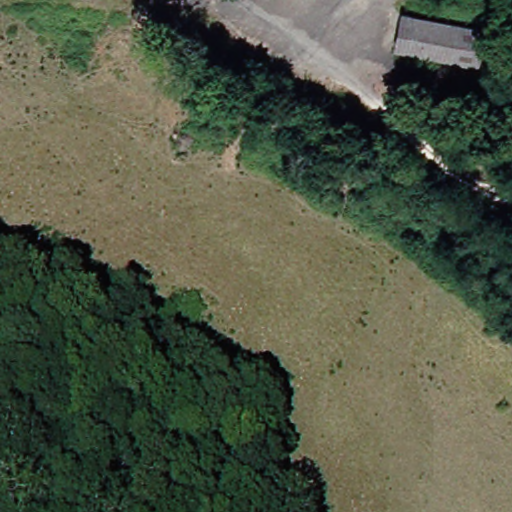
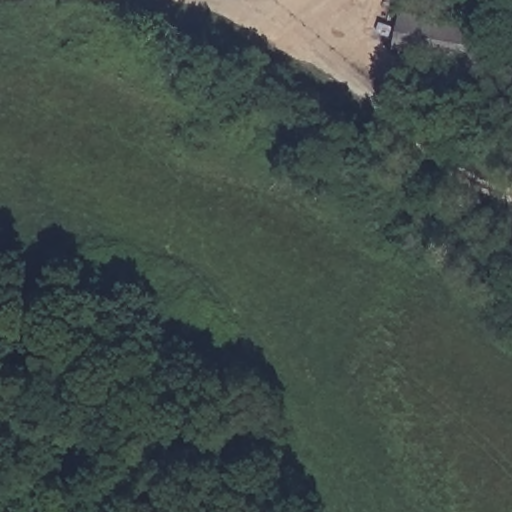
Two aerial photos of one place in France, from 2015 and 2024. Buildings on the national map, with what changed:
unchanged [(485,64),(408,49),(415,13),(492,28),(485,64)]

